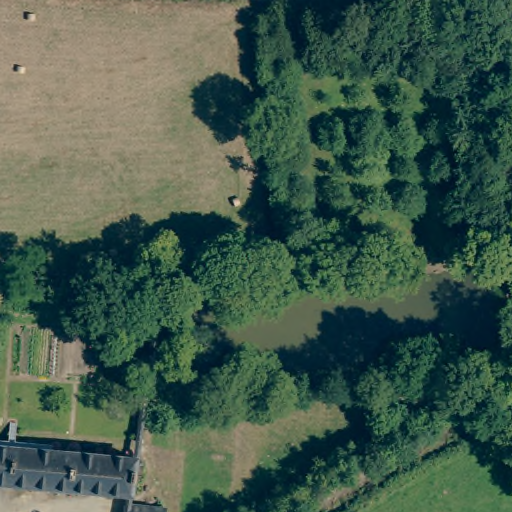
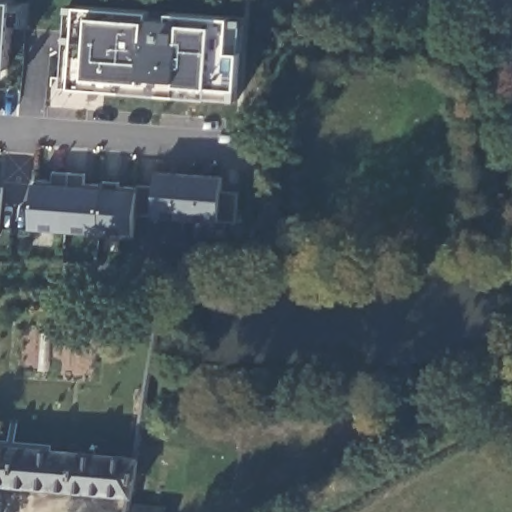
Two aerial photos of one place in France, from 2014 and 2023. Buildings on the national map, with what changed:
new [(12,1),(7,68),(0,67),(0,0),(12,1)]
new [(230,18),(227,52),(240,53),(237,89),(209,86),(208,99),(70,86),(76,6),(148,11),(148,18),(167,20),(168,12),(230,18)]
new [(52,185),(52,172),(84,175),(83,187),(134,190),(134,185),(155,187),(157,171),(222,177),(221,191),(238,193),(236,222),(218,221),(153,217),(135,215),(133,237),(30,228),(32,183),(52,185)]
new [(2,191),(0,222),(0,191),(2,191)]
unchanged [(84,459),(79,496),(0,483),(0,446),(84,459)]
unchanged [(84,459),(140,464),(135,500),(79,496),(84,459)]
unchanged [(128,505),(166,508),(166,512),(128,512),(128,505)]

